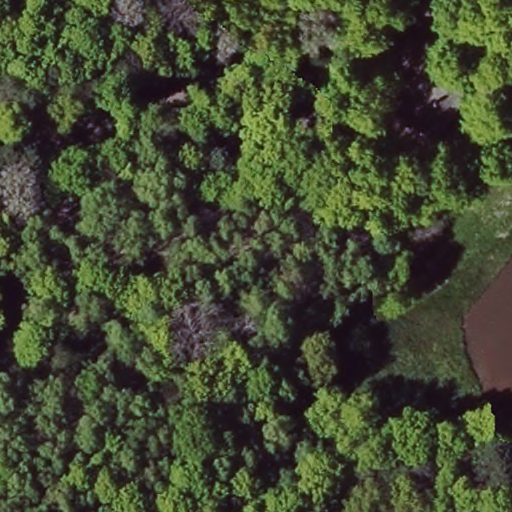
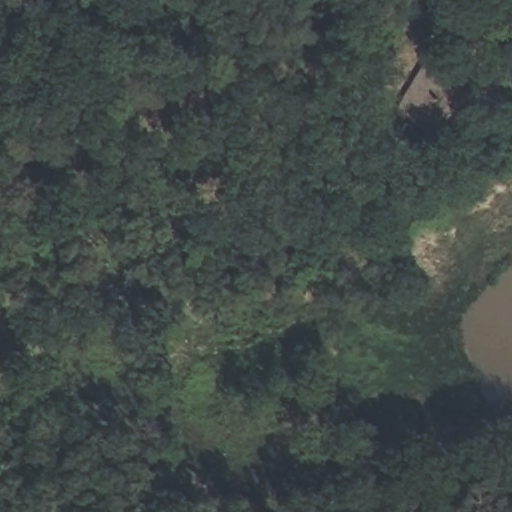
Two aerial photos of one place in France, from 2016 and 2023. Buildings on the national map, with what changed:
unchanged [(442,141),(394,116),(423,66),(468,88),(442,141)]
unchanged [(13,348),(35,359),(19,387),(0,377),(0,372),(13,348)]

